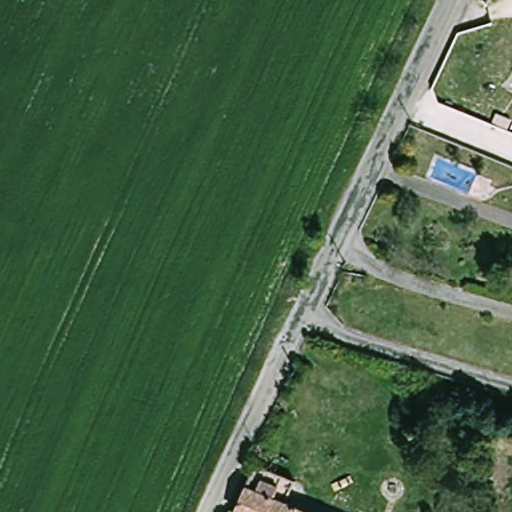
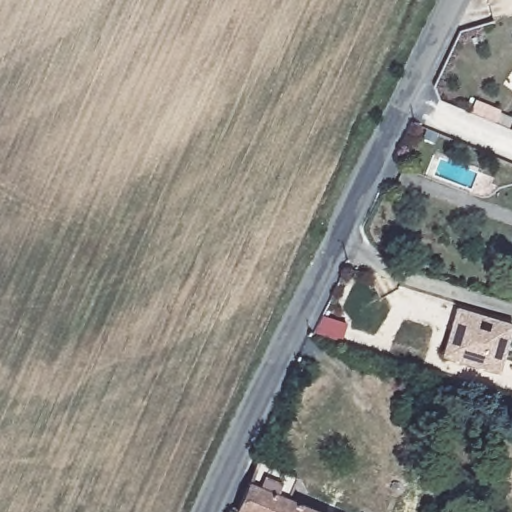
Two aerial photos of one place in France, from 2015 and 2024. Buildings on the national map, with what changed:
new [(477,100),(503,110),(498,121),(474,113),(477,100)]
new [(455,307),(512,324),(512,326),(499,373),(441,355),(455,307)]
unchanged [(266,460),(303,480),(293,500),(318,512),(256,512),(243,505),(266,460)]

